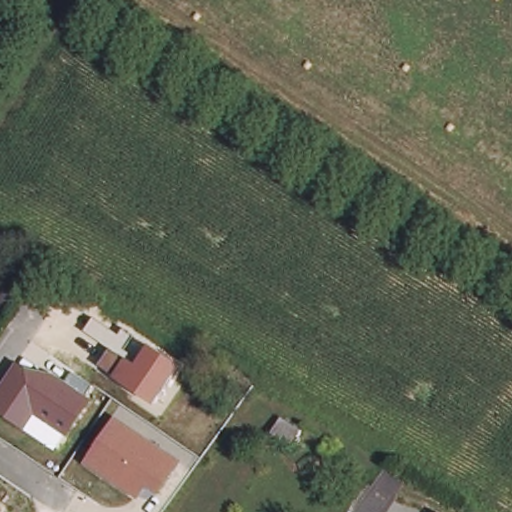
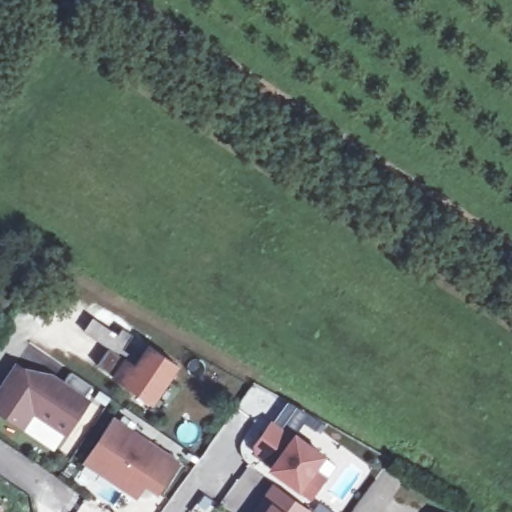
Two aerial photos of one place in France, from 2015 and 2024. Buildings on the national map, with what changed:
unchanged [(10,285),(0,302),(0,277),(10,285)]
unchanged [(153,406),(110,377),(113,373),(99,365),(110,348),(85,330),(93,318),(119,335),(122,329),(132,335),(123,349),(130,353),(126,358),(137,363),(150,346),(179,366),(153,406)]
unchanged [(56,450),(0,414),(0,387),(16,363),(25,368),(55,374),(65,382),(71,372),(92,386),(86,396),(91,400),(56,450)]
demolished [(291,428),(281,444),(263,431),(273,417),(291,428)]
unchanged [(180,462),(157,495),(145,488),(137,498),(82,464),(114,418),(180,462)]
new [(293,435),(295,432),(327,455),(317,470),(327,476),(311,500),(301,492),(270,470),(272,465),(255,453),(253,445),(272,420),(293,435)]
new [(314,512),(253,512),(273,483),(314,512)]
unchanged [(0,512),(0,510),(1,511),(0,512)]

